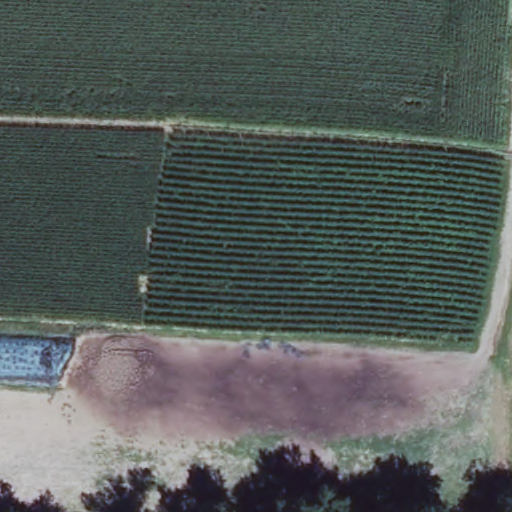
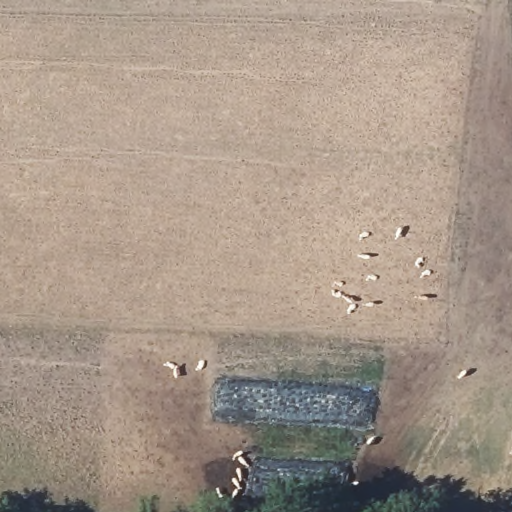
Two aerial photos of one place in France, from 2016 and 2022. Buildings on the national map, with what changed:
[]

